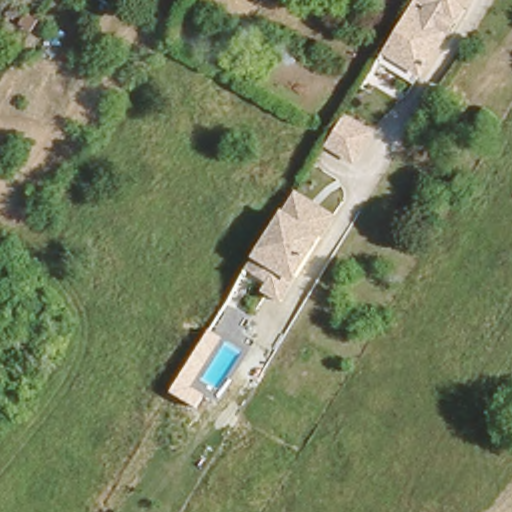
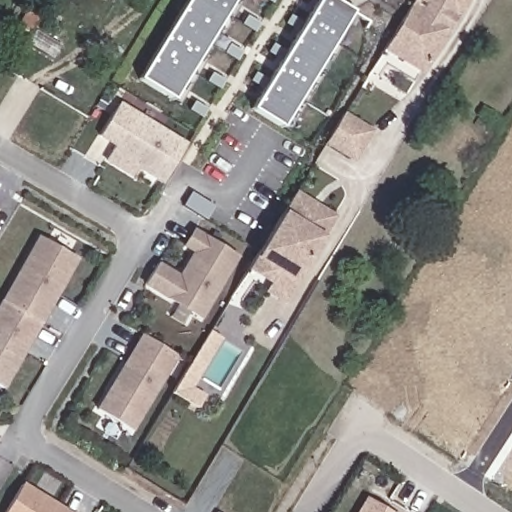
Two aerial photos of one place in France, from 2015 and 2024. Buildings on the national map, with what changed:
new [(141,78),(190,0),(232,0),(172,97),(141,78)]
new [(282,125),(254,108),(321,0),(330,0),(350,13),(282,125)]
unchanged [(444,31),(438,28),(416,65),(392,50),(422,0),(464,0),(449,26),(444,31)]
unchanged [(30,30),(19,23),(26,10),(38,16),(30,30)]
unchanged [(357,165),(323,145),(344,111),(377,133),(357,165)]
new [(111,153),(136,112),(187,143),(163,184),(111,153)]
unchanged [(326,239),(295,284),(280,303),(263,295),(268,287),(249,271),(255,261),(283,213),(297,192),(336,218),(326,239)]
new [(143,286),(158,262),(178,274),(190,253),(182,247),(193,228),(239,256),(200,320),(143,286)]
new [(38,236),(79,259),(41,325),(0,301),(38,236)]
new [(0,301),(41,325),(4,390),(0,388),(0,301)]
new [(213,333),(223,339),(193,388),(210,397),(204,408),(177,392),(184,382),(213,333)]
new [(94,410),(141,334),(178,357),(131,432),(94,410)]
new [(22,483),(69,512),(4,512),(22,483)]
new [(366,500),(387,512),(358,512),(366,500)]

